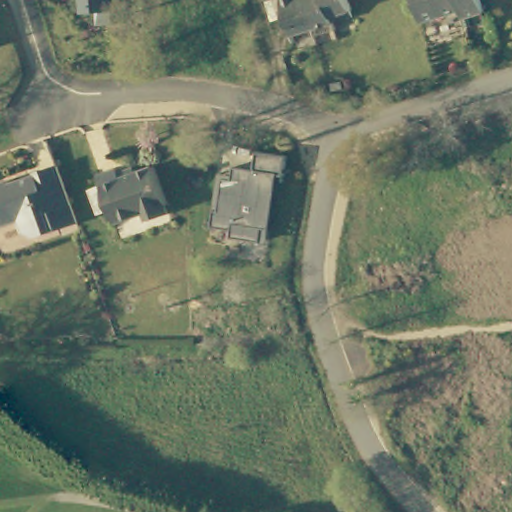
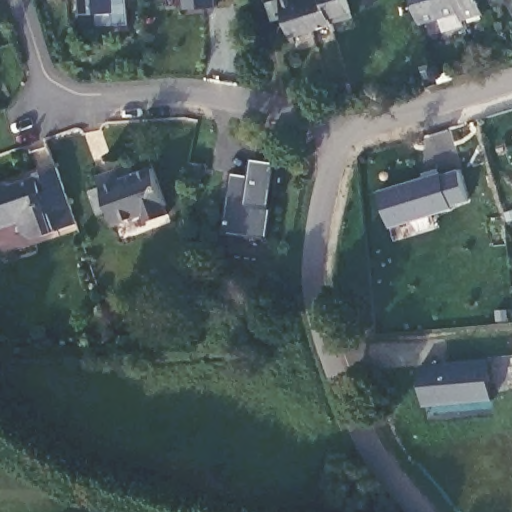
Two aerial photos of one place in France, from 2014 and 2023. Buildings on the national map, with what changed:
unchanged [(80,0),(126,0),(127,10),(81,16),(80,0)]
new [(185,0),(216,0),(217,6),(186,7),(185,0)]
unchanged [(311,21),(314,30),(289,37),(278,0),(346,0),(349,10),(311,21)]
unchanged [(461,17),(459,10),(422,21),(414,0),(481,0),(484,10),(461,17)]
unchanged [(231,236),(232,229),(213,226),(221,175),(233,176),(235,169),(252,171),(255,151),(285,156),(282,176),(278,175),(266,244),(231,236)]
unchanged [(35,221),(19,217),(17,207),(0,214),(0,178),(6,175),(10,184),(35,175),(33,167),(56,159),(66,190),(75,216),(59,222),(56,214),(35,221)]
unchanged [(152,160),(160,182),(163,184),(165,201),(142,211),(139,205),(114,216),(110,204),(94,210),(85,186),(100,180),(97,167),(118,160),(123,172),(152,160)]
new [(440,174),(458,170),(467,200),(450,206),(451,209),(388,227),(376,190),(439,171),(440,174)]
new [(491,401),(422,405),(419,363),(489,360),(491,401)]

